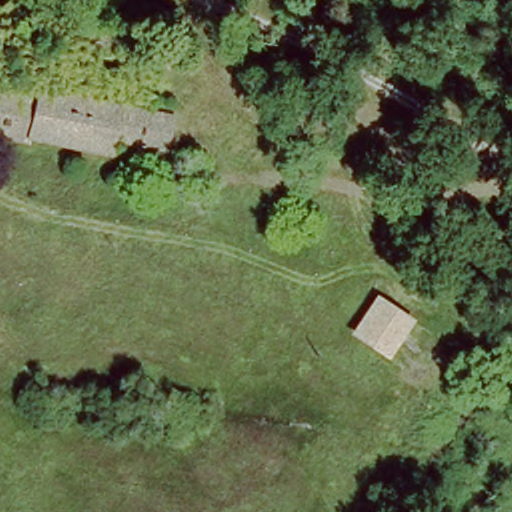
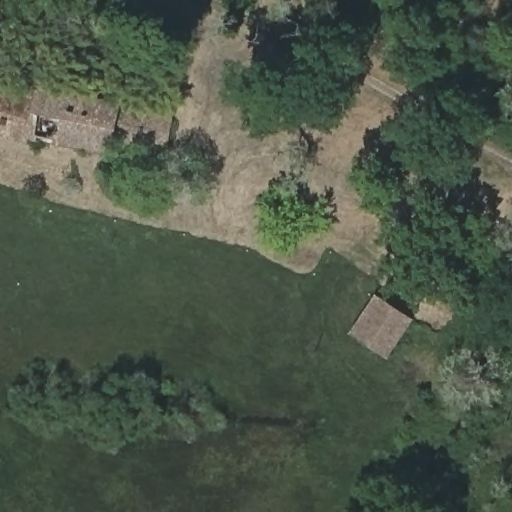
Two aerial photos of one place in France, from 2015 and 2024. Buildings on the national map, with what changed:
unchanged [(46,132),(45,140),(0,131),(0,80),(180,117),(165,147),(46,132)]
unchanged [(406,375),(340,331),(373,280),(440,324),(406,375)]

